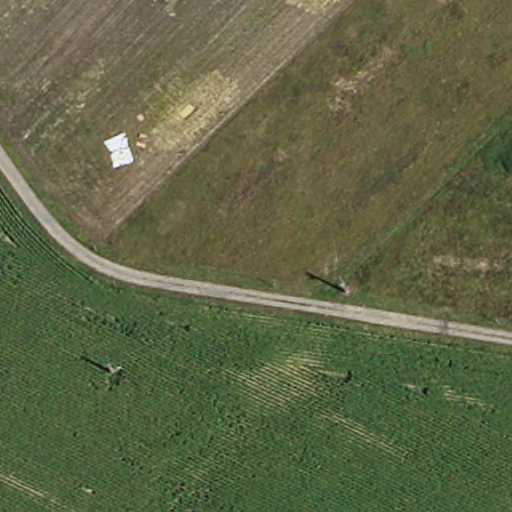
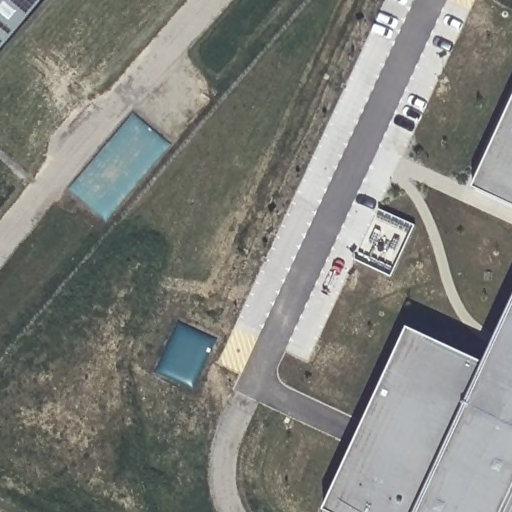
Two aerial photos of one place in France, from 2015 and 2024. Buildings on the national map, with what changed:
new [(0,46),(0,0),(39,0),(0,46)]
new [(475,188),(512,104),(512,206),(475,188)]
new [(324,512),(407,328),(486,365),(512,310),(512,512),(324,512)]

